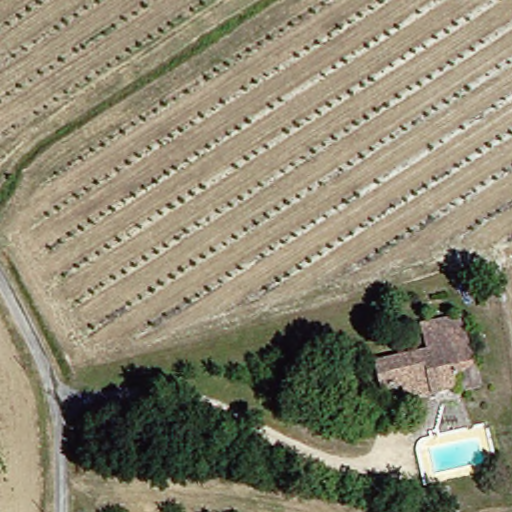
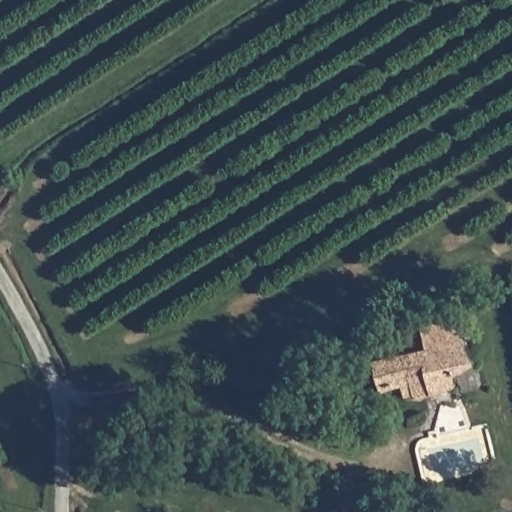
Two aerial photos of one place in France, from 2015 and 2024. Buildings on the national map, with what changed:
unchanged [(469,273),(472,287),(460,291),(454,276),(469,273)]
unchanged [(431,350),(425,326),(463,316),(480,367),(456,373),(459,384),(422,397),(421,391),(408,394),(406,385),(383,390),(377,363),(431,350)]

